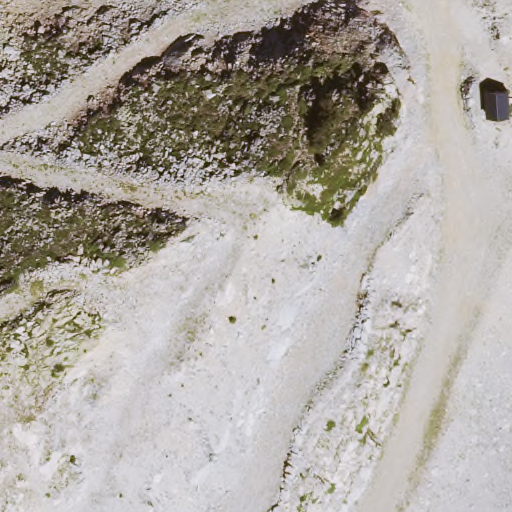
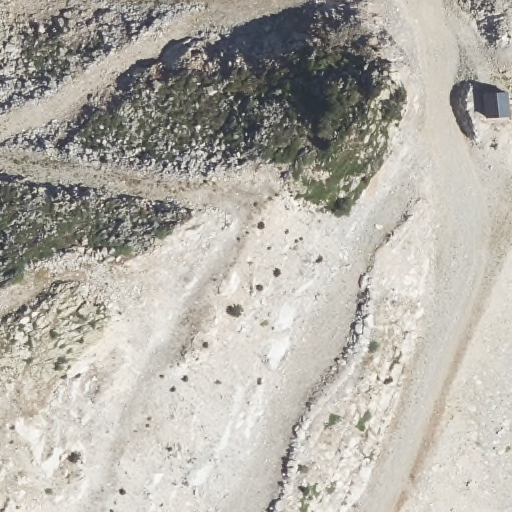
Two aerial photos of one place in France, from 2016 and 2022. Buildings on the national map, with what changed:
unchanged [(483,98),(505,97),(507,121),(486,123),(483,98)]

